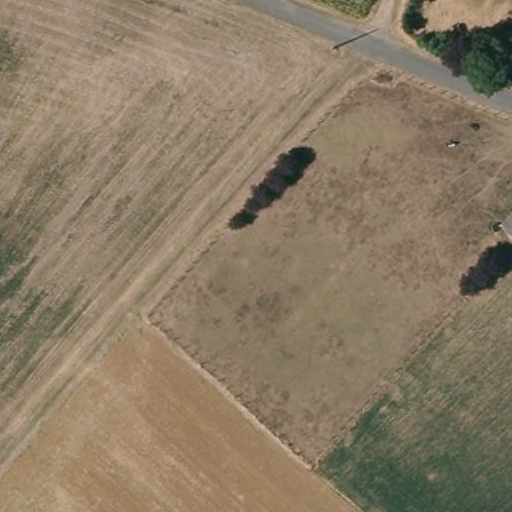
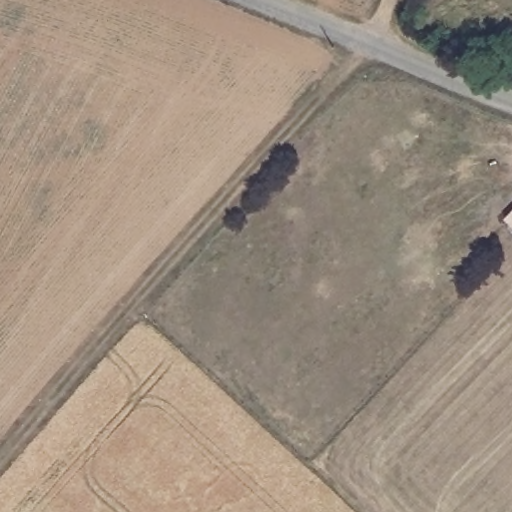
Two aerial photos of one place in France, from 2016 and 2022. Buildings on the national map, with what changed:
unchanged [(504,220),(512,211),(512,227),(504,220)]

